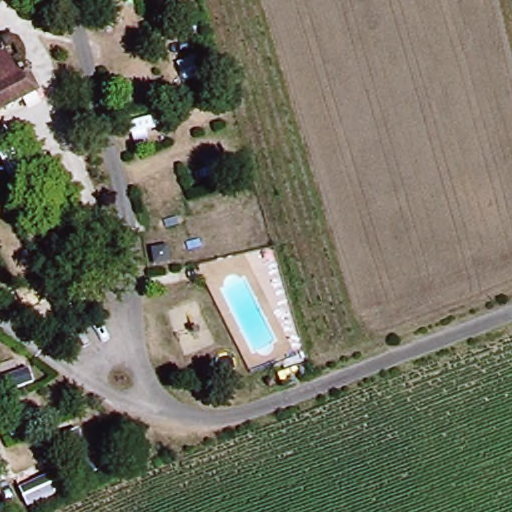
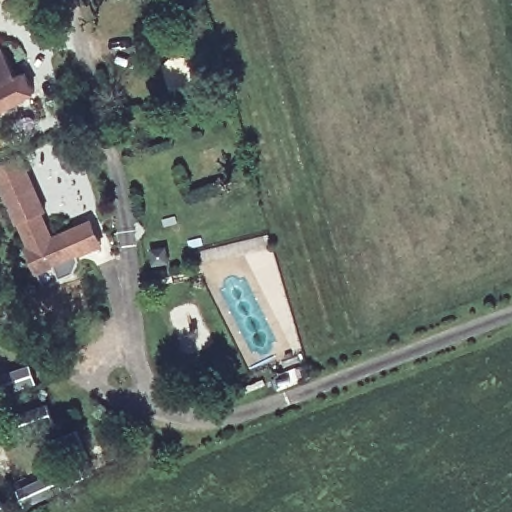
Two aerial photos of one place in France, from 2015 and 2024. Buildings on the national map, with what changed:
unchanged [(0,111),(0,49),(2,48),(17,78),(28,73),(38,92),(0,111)]
new [(45,212),(55,234),(91,220),(103,247),(80,257),(75,272),(45,284),(40,274),(0,182),(0,166),(23,156),(47,211),(45,212)]
demolished [(73,269),(58,276),(52,261),(35,268),(26,246),(53,234),(63,256),(67,254),(73,269)]

